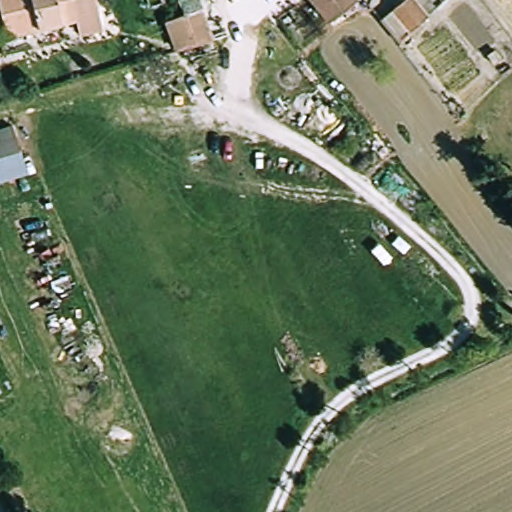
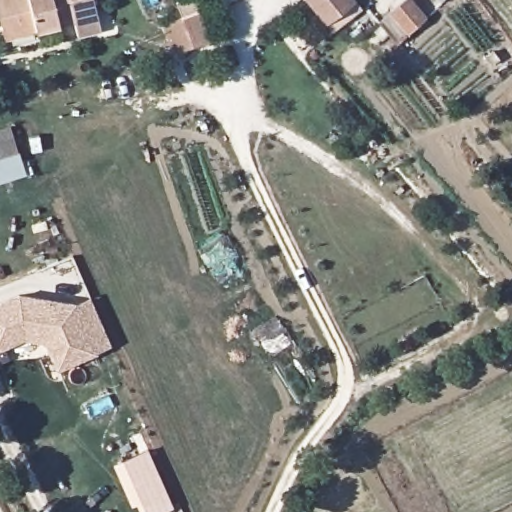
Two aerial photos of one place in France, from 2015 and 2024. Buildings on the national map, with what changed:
unchanged [(0,0),(96,0),(104,34),(78,40),(75,26),(54,31),(38,34),(5,40),(0,12),(0,0)]
unchanged [(326,25),(305,0),(353,0),(354,0),(326,25)]
unchanged [(389,24),(415,4),(428,18),(402,39),(389,24)]
unchanged [(182,16),(205,7),(211,22),(218,39),(195,47),(173,54),(163,22),(182,16)]
unchanged [(0,160),(0,131),(11,127),(20,153),(0,160)]
new [(93,298),(112,349),(95,355),(57,369),(45,340),(25,336),(0,345),(0,300),(21,293),(76,304),(93,298)]
new [(173,505),(158,512),(140,512),(136,502),(131,504),(112,462),(147,447),(173,505)]

